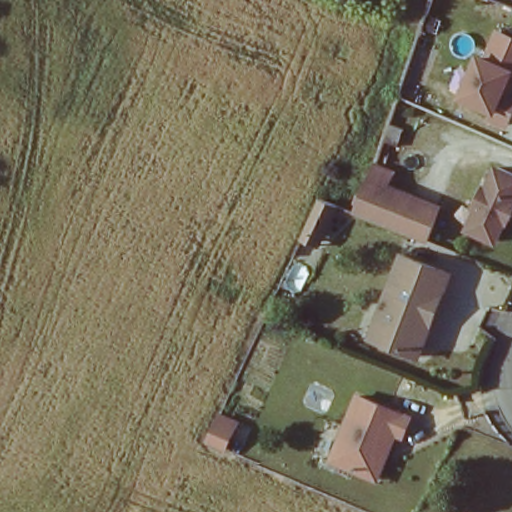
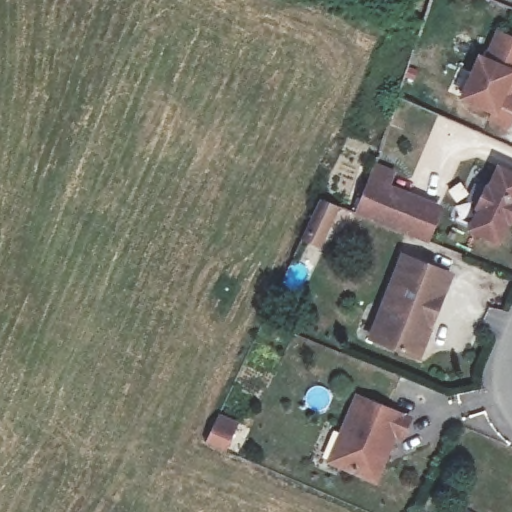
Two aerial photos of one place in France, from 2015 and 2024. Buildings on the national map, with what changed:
unchanged [(512,36),(512,88),(510,93),(512,94),(512,122),(508,131),(486,122),(489,111),(458,97),(479,52),(485,55),(497,29),(512,36)]
unchanged [(512,167),(512,216),(508,214),(499,234),(472,221),(481,201),(479,200),(490,179),(493,181),(502,162),(512,167)]
unchanged [(441,194),(425,243),(355,217),(371,168),(441,194)]
unchanged [(381,308),(402,256),(449,274),(441,295),(429,327),(417,358),(378,343),(369,339),(381,308)]
unchanged [(340,452),(361,400),(413,421),(406,440),(399,437),(380,484),(339,468),(335,466),(340,452)]

